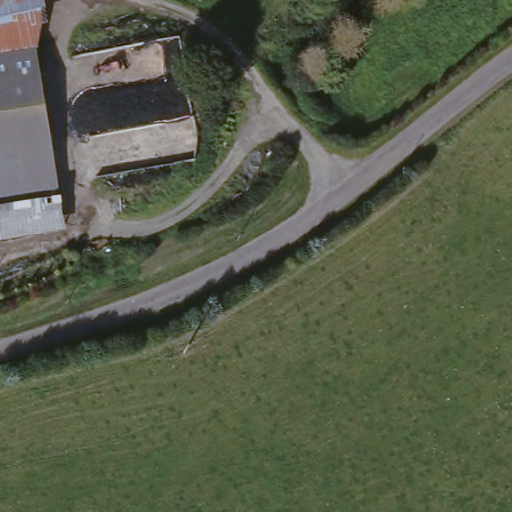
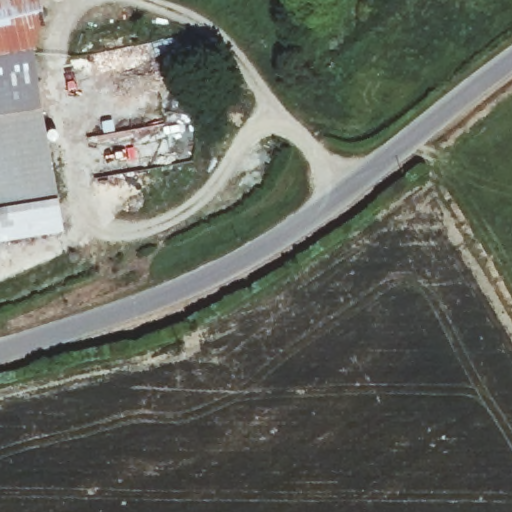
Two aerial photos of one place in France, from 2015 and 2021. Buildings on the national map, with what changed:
unchanged [(0,238),(0,0),(19,0),(71,222),(0,238)]

